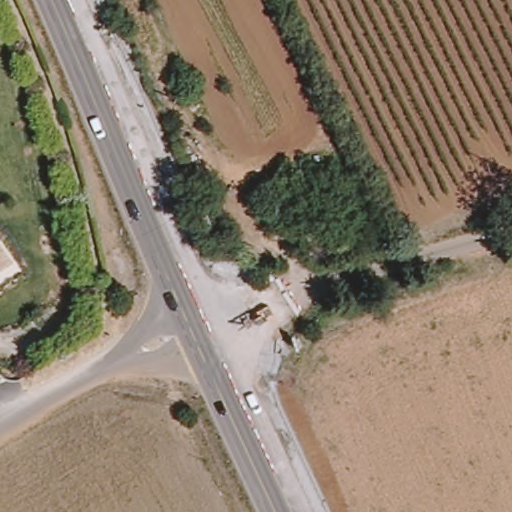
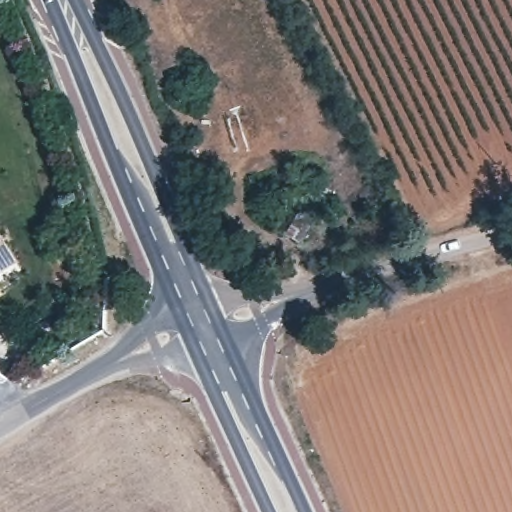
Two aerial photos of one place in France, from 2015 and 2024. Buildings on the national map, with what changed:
unchanged [(0,274),(0,236),(18,263),(0,274)]

